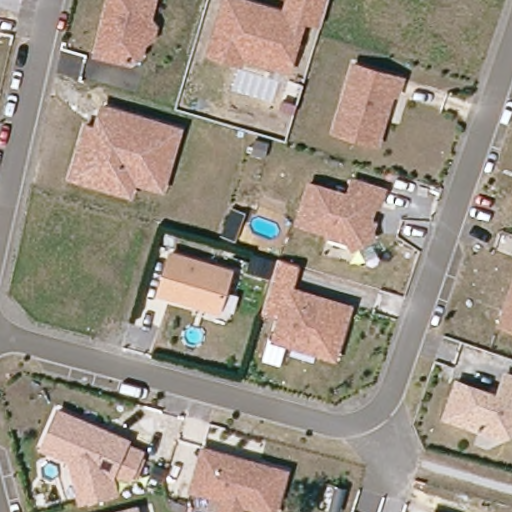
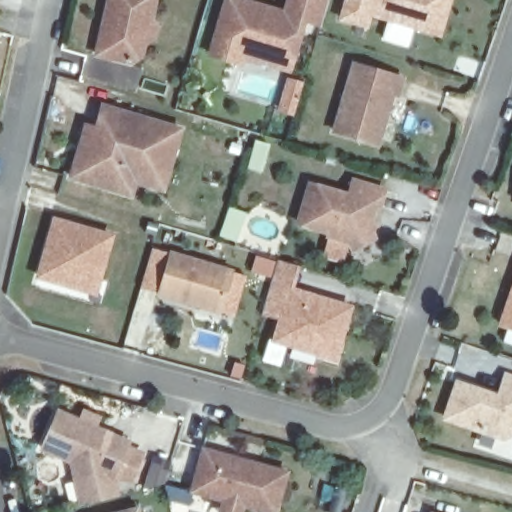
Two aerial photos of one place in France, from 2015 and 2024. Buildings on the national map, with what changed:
unchanged [(111,0),(157,0),(151,25),(156,26),(154,41),(146,45),(144,56),(134,63),(125,61),(115,59),(98,55),(111,0)]
unchanged [(206,56),(222,0),(235,0),(260,8),(272,11),(281,14),(285,0),(325,0),(317,26),(300,21),(290,54),(285,71),(239,57),(236,65),(206,56)]
new [(371,17),(367,28),(337,21),(343,0),(452,0),(442,37),(371,17)]
unchanged [(379,145),(336,132),(356,65),(404,79),(399,96),(394,94),(379,145)]
unchanged [(136,181),(132,195),(118,191),(72,178),(78,158),(87,127),(98,131),(105,107),(181,129),(169,175),(164,189),(136,181)]
unchanged [(370,233),(350,244),(346,238),(325,232),(326,228),(295,219),(307,180),(346,192),(350,176),(381,185),(376,202),(372,200),(367,215),(371,216),(368,229),(370,233)]
new [(115,235),(95,295),(34,279),(52,215),(115,235)]
new [(287,285),(276,320),(260,316),(271,279),(246,272),(253,253),(298,266),(293,287),(287,285)]
unchanged [(220,313),(161,295),(173,255),(232,272),(220,313)]
demolished [(273,278),(259,274),(262,263),(276,267),(273,278)]
unchanged [(354,304),(337,361),(271,339),(287,285),(354,304)]
unchanged [(503,325),(512,299),(512,328),(503,325)]
unchanged [(505,438),(447,418),(460,384),(501,398),(508,376),(512,377),(512,434),(505,438)]
unchanged [(132,484),(117,479),(120,494),(78,505),(68,463),(38,449),(56,408),(132,439),(130,443),(145,451),(132,484)]
unchanged [(225,501),(194,492),(197,479),(205,450),(222,455),(245,461),(255,464),(288,473),(277,512),(266,512),(245,506),(243,512),(222,512),(225,501)]
unchanged [(343,512),(332,512),(337,493),(347,496),(343,512)]
unchanged [(139,505),(140,512),(109,512),(139,505)]

